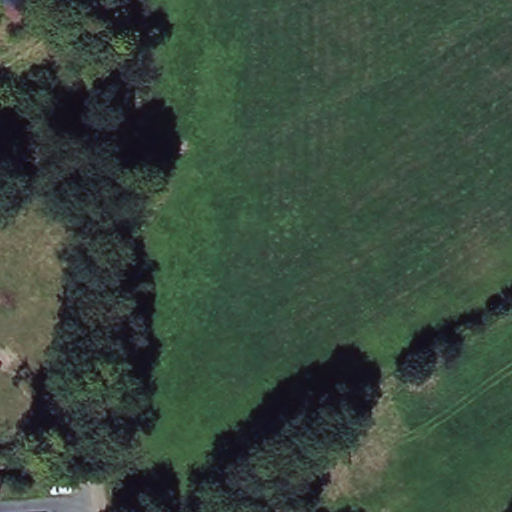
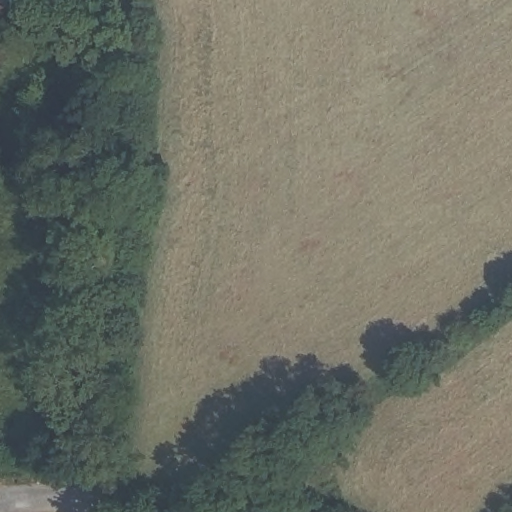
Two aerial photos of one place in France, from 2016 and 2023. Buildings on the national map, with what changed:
unchanged [(10,18),(0,13),(0,0),(12,0),(19,4),(10,18)]

